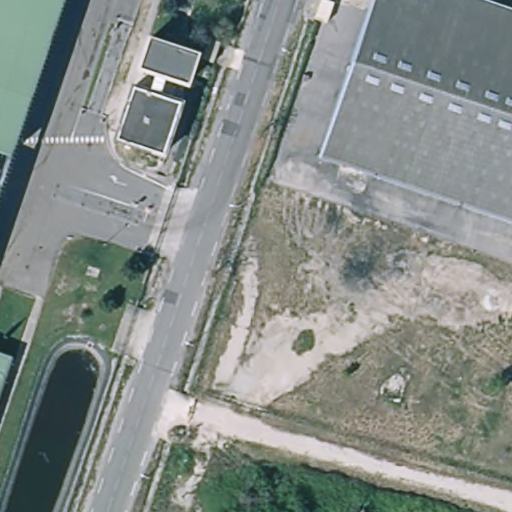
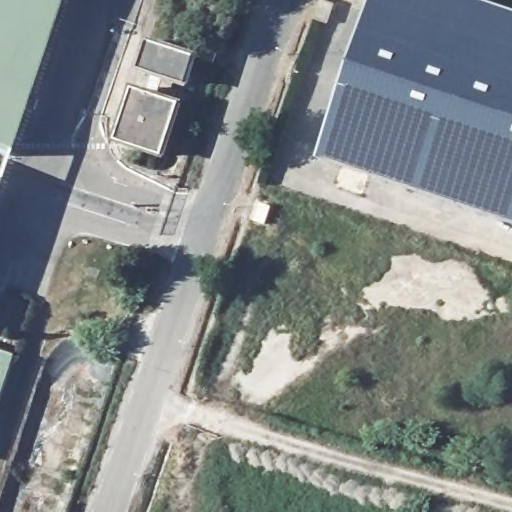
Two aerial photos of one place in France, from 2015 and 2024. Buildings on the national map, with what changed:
unchanged [(60,0),(8,154),(0,151),(0,0),(60,0)]
unchanged [(375,0),(476,0),(512,12),(512,225),(320,164),(375,0)]
unchanged [(222,40),(215,60),(204,56),(211,36),(222,40)]
unchanged [(151,37),(198,54),(189,82),(142,66),(151,37)]
unchanged [(165,158),(117,142),(124,123),(128,109),(135,90),(182,106),(165,158)]
unchanged [(12,360),(0,394),(0,356),(12,360)]

